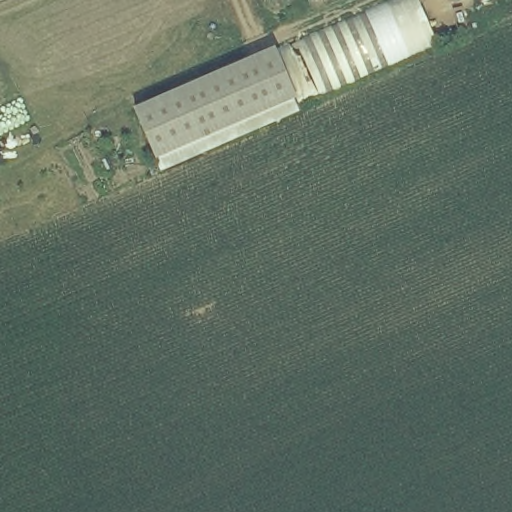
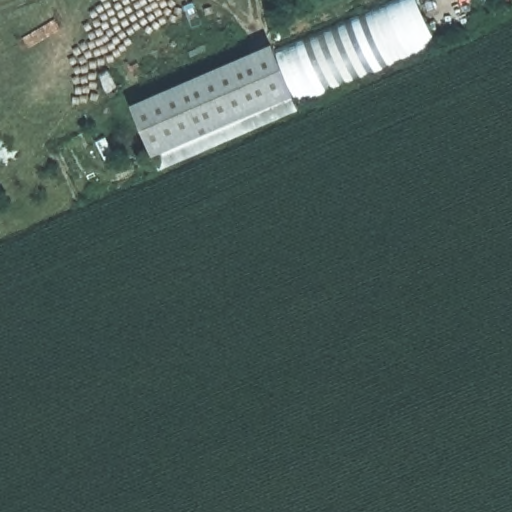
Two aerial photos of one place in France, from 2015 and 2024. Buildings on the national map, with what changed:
unchanged [(277,47),(392,2),(398,0),(420,0),(439,46),(392,65),(298,102),(300,110),(207,152),(164,172),(157,161),(152,152),(132,107),(277,47)]

